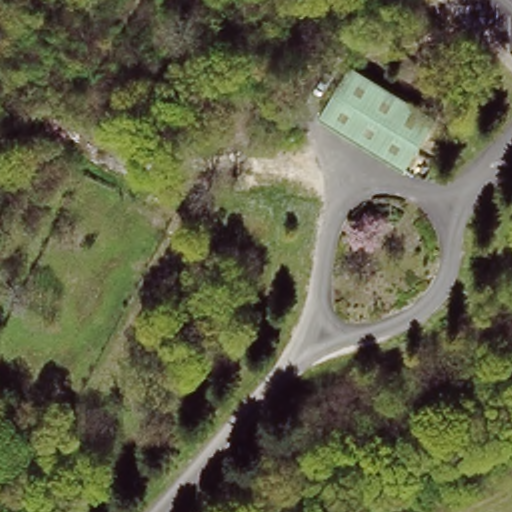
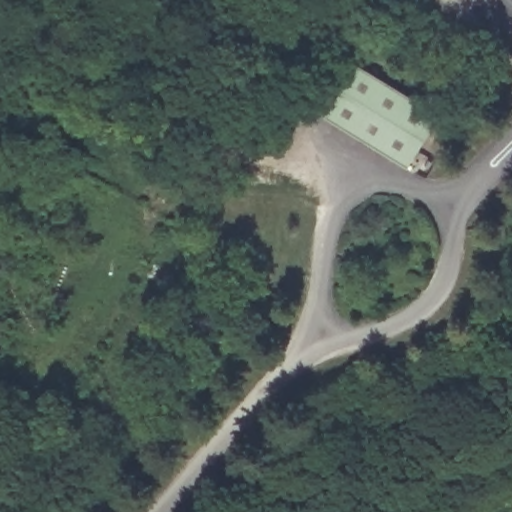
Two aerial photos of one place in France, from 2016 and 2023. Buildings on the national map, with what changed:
unchanged [(438,114),(405,167),(319,114),(352,61),(438,114)]
unchanged [(345,69),(337,83),(330,78),(338,65),(345,69)]

